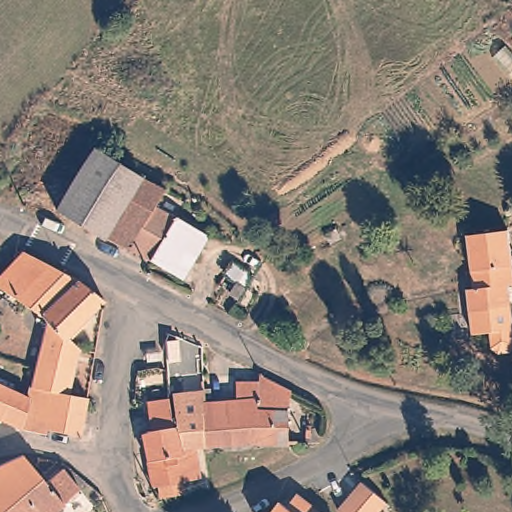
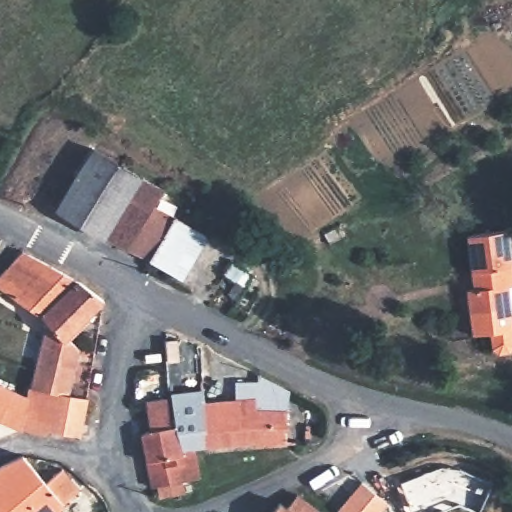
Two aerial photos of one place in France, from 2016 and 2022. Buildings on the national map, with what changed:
unchanged [(51,207),(90,150),(120,167),(83,227),(51,207)]
unchanged [(120,167),(159,190),(151,205),(170,216),(144,260),(91,232),(83,227),(120,167)]
unchanged [(170,216),(202,235),(177,276),(144,260),(170,216)]
unchanged [(512,278),(512,285),(505,285),(512,337),(512,346),(507,351),(496,353),(490,349),(489,347),(487,333),(470,335),(463,290),(469,290),(461,236),(505,230),(512,278)]
unchanged [(26,396),(28,386),(31,366),(32,356),(26,353),(46,319),(36,309),(0,286),(0,272),(23,251),(79,280),(100,307),(62,339),(73,345),(64,392),(83,396),(82,407),(92,409),(91,422),(79,422),(77,433),(44,426),(43,431),(20,425),(26,396)]
unchanged [(234,263),(255,276),(247,288),(226,275),(234,263)]
unchanged [(233,385),(253,385),(253,375),(285,391),(284,411),(274,411),(276,446),(256,447),(205,450),(200,405),(233,402),(233,385)]
unchanged [(26,396),(20,425),(0,417),(0,385),(26,396)]
unchanged [(171,396),(199,395),(200,405),(205,450),(196,450),(177,451),(174,430),(171,396)]
unchanged [(152,433),(147,405),(166,401),(169,430),(174,430),(177,451),(196,450),(199,481),(181,485),(183,496),(170,499),(167,487),(153,490),(142,435),(152,433)]
unchanged [(38,475),(54,461),(72,481),(37,512),(4,512),(2,510),(0,511),(0,457),(16,451),(20,455),(38,475)]
unchanged [(354,486),(359,480),(384,501),(380,506),(375,512),(339,512),(335,509),(354,486)]
unchanged [(277,505),(285,511),(295,498),(311,510),(313,512),(272,512),(277,505)]
unchanged [(2,510),(4,512),(0,512),(0,511),(2,510)]

